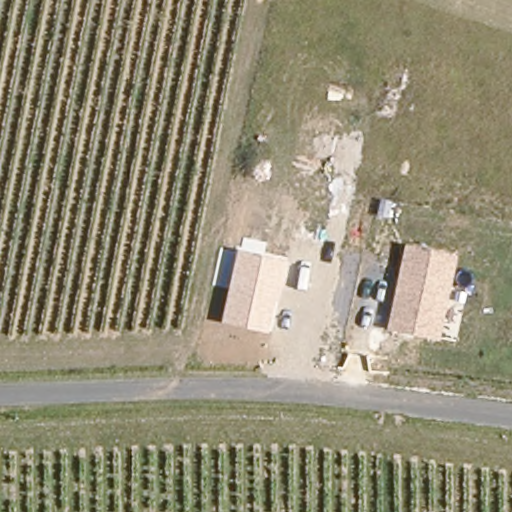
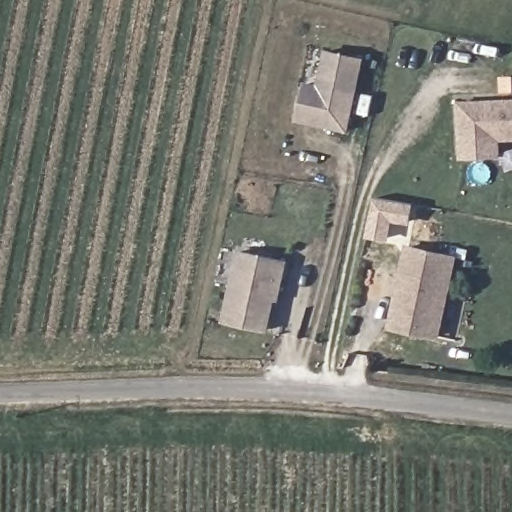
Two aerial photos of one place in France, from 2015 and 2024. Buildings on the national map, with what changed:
new [(350,132),(297,122),(306,82),(319,84),(326,50),(367,57),(350,132)]
new [(503,157),(461,158),(458,101),(512,98),(512,141),(502,141),(503,157)]
new [(416,206),(412,226),(394,222),(391,241),(368,238),(375,199),(416,206)]
unchanged [(440,340),(389,330),(407,245),(460,256),(440,340)]
unchanged [(272,331),(224,323),(239,250),(287,260),(272,331)]

